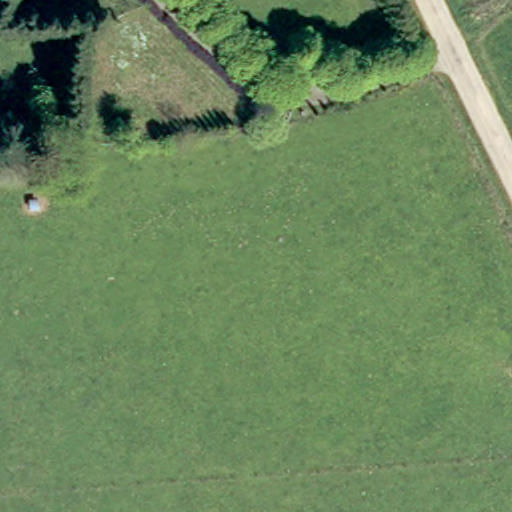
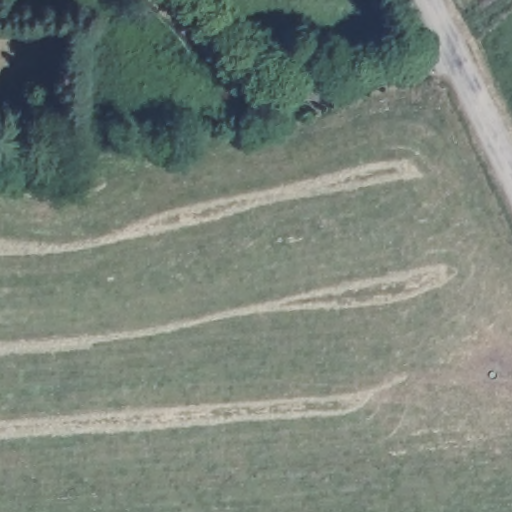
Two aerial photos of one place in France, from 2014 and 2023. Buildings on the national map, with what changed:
unchanged [(294,41),(279,67),(255,53),(269,27),(294,41)]

